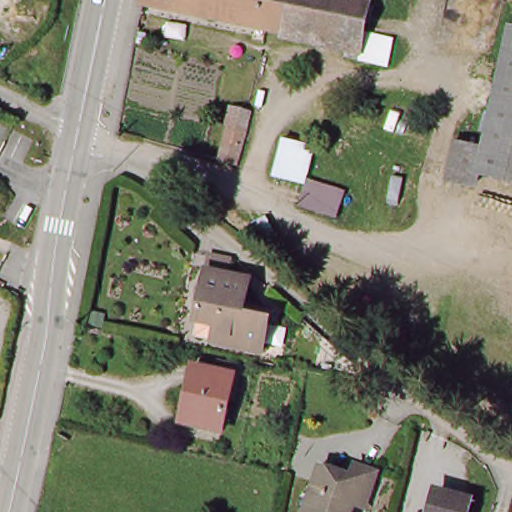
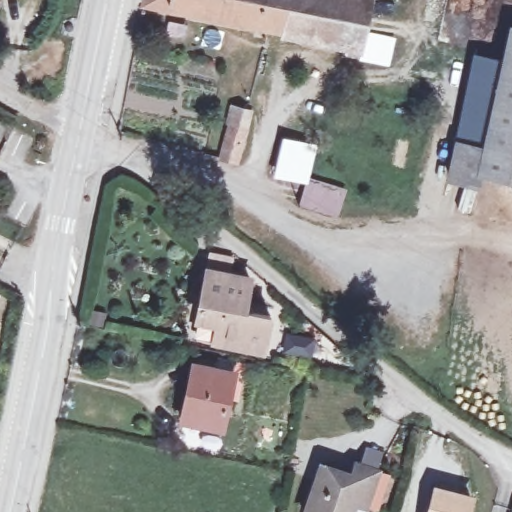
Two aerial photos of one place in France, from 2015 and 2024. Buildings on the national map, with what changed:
unchanged [(362,62),(365,45),(257,23),(175,7),(145,1),(145,0),(375,0),(373,11),(368,32),(397,37),(392,68),(362,62)]
unchanged [(477,175),(476,182),(448,176),(455,144),(483,150),(510,28),(512,29),(512,183),(477,175)]
new [(483,150),(455,144),(475,53),(502,60),(483,150)]
unchanged [(251,107),(239,160),(218,159),(228,105),(251,107)]
unchanged [(278,136),(315,142),(308,177),(343,185),(337,216),(297,206),(301,185),(268,176),(278,136)]
unchanged [(230,276),(250,281),(246,310),(271,316),(263,353),(194,338),(210,254),(233,259),(230,276)]
unchanged [(235,375),(223,429),(185,422),(196,367),(235,375)]
unchanged [(350,507),(348,512),(303,512),(317,468),(347,478),(352,467),(373,475),(360,511),(350,507)]
unchanged [(471,501),(468,512),(431,512),(437,492),(471,501)]

